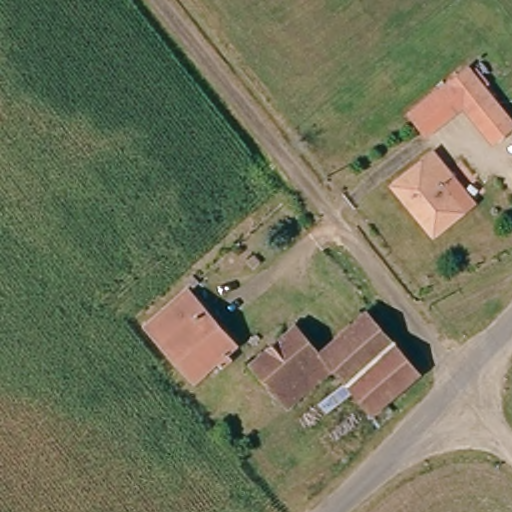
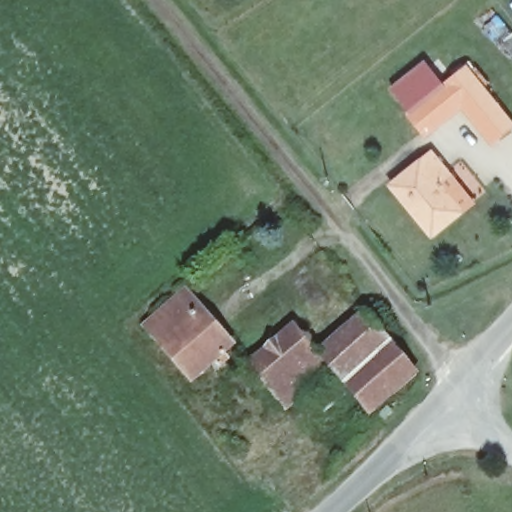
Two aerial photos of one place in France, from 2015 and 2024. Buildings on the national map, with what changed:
new [(408,113),(392,89),(425,59),(445,84),(408,113)]
unchanged [(491,142),(474,120),(461,105),(425,133),(408,113),(468,66),(497,103),(512,122),(512,125),(491,142)]
unchanged [(429,152),(470,199),(428,234),(406,207),(415,200),(397,178),(429,152)]
unchanged [(195,381),(156,335),(152,331),(146,323),(189,291),(200,304),(236,347),(195,381)]
unchanged [(385,338),(396,352),(349,387),(335,371),(289,404),(249,357),(296,322),(315,347),(364,311),(375,326),(390,315),(400,328),(385,338)]
unchanged [(422,384),(375,420),(349,387),(396,352),(422,384)]
unchanged [(393,421),(387,425),(383,420),(388,416),(393,421)]

